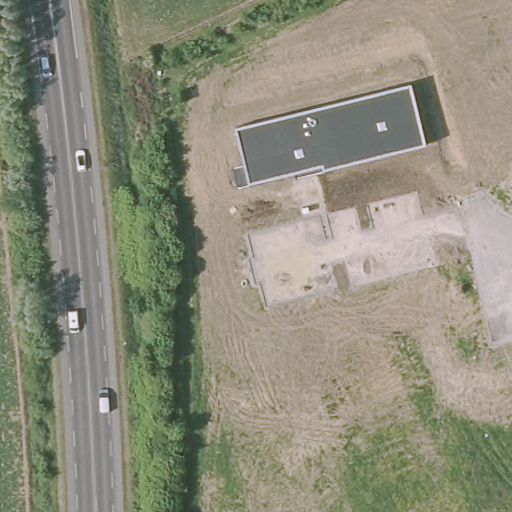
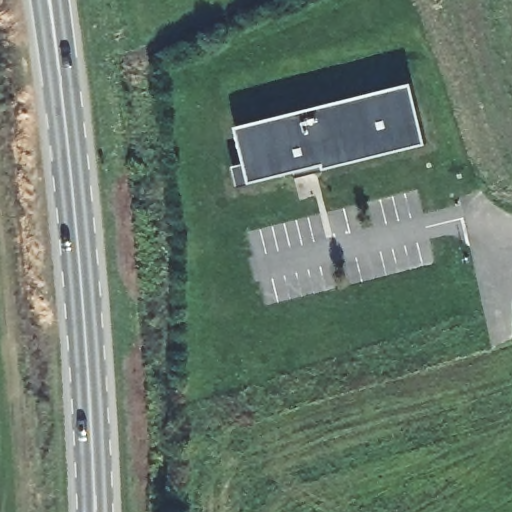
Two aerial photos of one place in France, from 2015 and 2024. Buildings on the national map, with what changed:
unchanged [(412,82),(427,145),(297,176),(295,172),(238,185),(233,166),(245,163),(237,126),(412,82)]

